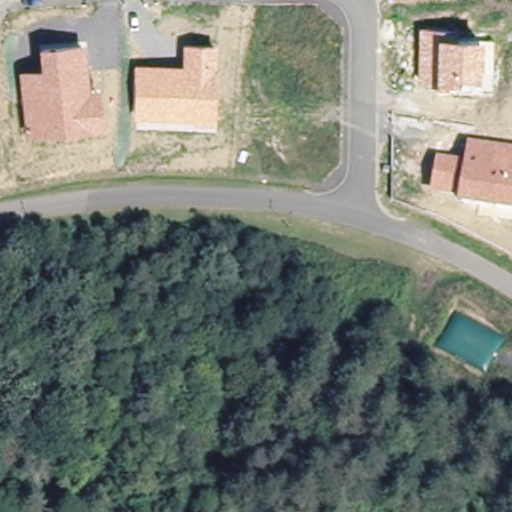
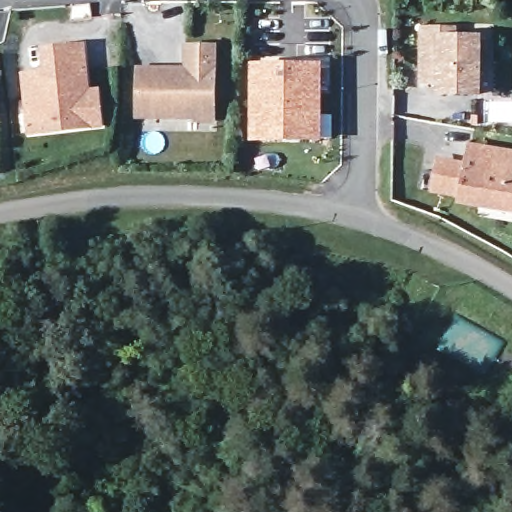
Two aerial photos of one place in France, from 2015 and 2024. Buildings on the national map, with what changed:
unchanged [(458,26),(458,39),(482,39),(482,102),(436,101),(437,84),(418,85),(418,27),(458,26)]
unchanged [(40,72),(38,51),(86,45),(91,92),(100,90),(103,131),(26,139),(19,75),(40,72)]
unchanged [(182,66),(182,46),(218,45),(215,124),(134,120),(134,64),(182,66)]
new [(249,61),(323,62),(324,116),(333,116),(333,138),(249,142),(249,61)]
unchanged [(464,160),(467,142),(512,150),(512,219),(457,209),(459,199),(431,194),(435,156),(464,160)]

